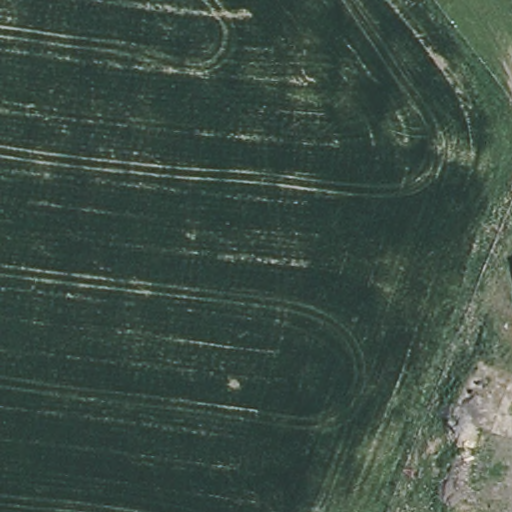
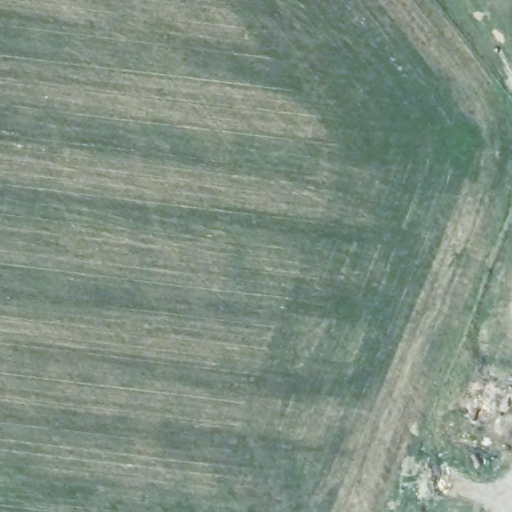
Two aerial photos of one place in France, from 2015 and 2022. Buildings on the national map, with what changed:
[]

